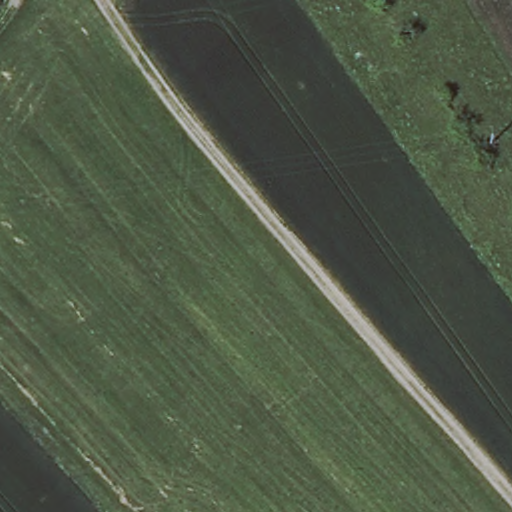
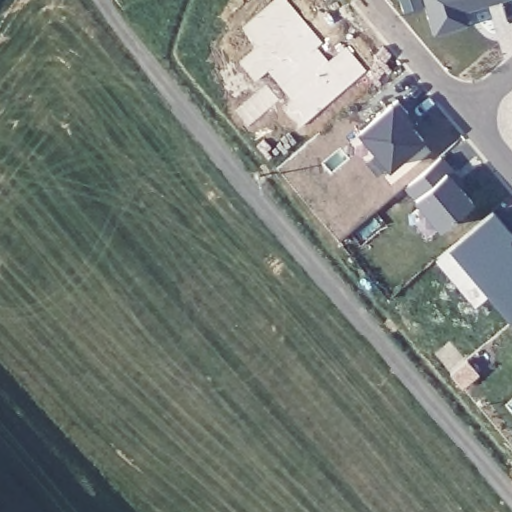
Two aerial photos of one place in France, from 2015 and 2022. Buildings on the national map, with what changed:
new [(316,49),(329,64),(346,49),(366,71),(305,124),(268,73),(255,84),(240,63),(256,49),(241,30),(273,0),(285,0),(322,44),(316,49)]
new [(404,15),(401,0),(420,0),(422,9),(404,15)]
new [(471,27),(434,40),(423,0),(512,0),(467,14),(471,27)]
new [(410,121),(420,134),(387,161),(357,126),(395,95),(414,118),(410,121)]
new [(375,171),(360,152),(371,142),(387,161),(375,171)]
new [(452,173),(448,176),(475,209),(442,237),(405,190),(442,160),(452,173)]
new [(448,247),(495,208),(512,229),(512,319),(512,320),(448,247)]

